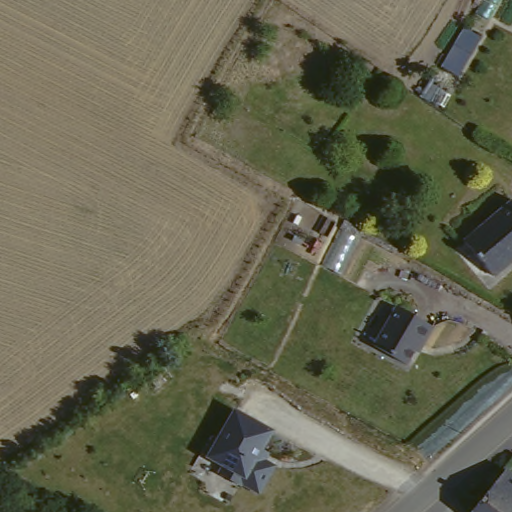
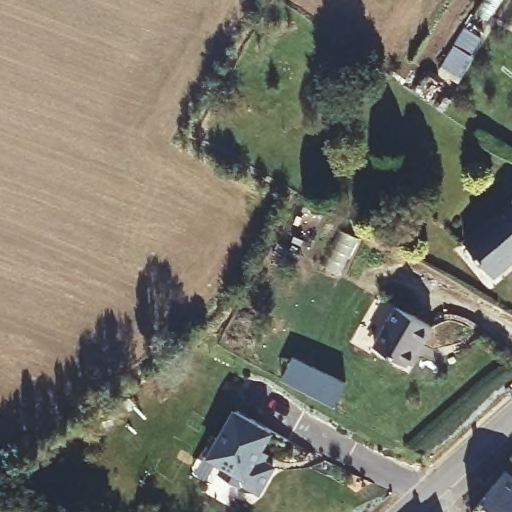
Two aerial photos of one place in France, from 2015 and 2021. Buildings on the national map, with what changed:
unchanged [(443,65),(467,25),(484,35),(461,76),(443,65)]
unchanged [(464,244),(510,200),(512,203),(512,257),(492,276),(464,244)]
unchanged [(420,334),(409,358),(378,342),(396,306),(398,302),(433,319),(430,324),(424,336),(420,334)]
new [(331,407),(299,388),(279,378),(291,357),(311,367),(343,385),(331,407)]
unchanged [(268,459),(280,464),(265,491),(248,482),(246,484),(225,473),(229,464),(209,454),(219,436),(223,438),(239,410),(276,429),(266,448),(273,451),(268,459)]
unchanged [(507,472),(512,476),(512,512),(476,512),(507,472)]

